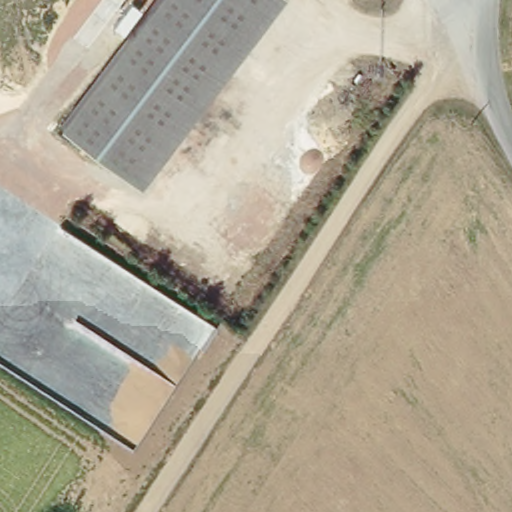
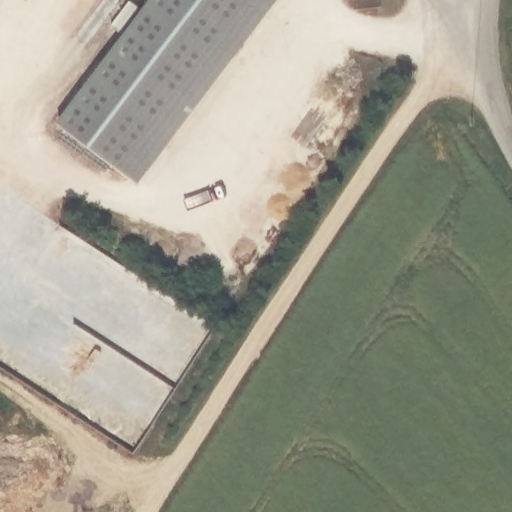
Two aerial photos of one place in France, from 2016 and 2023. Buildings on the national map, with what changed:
unchanged [(163,0),(265,0),(122,178),(60,128),(163,0)]

